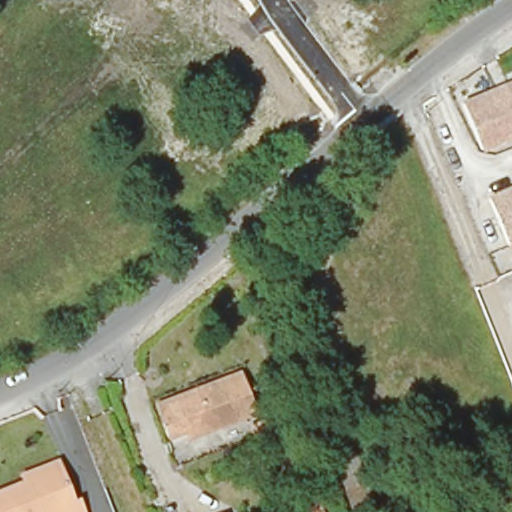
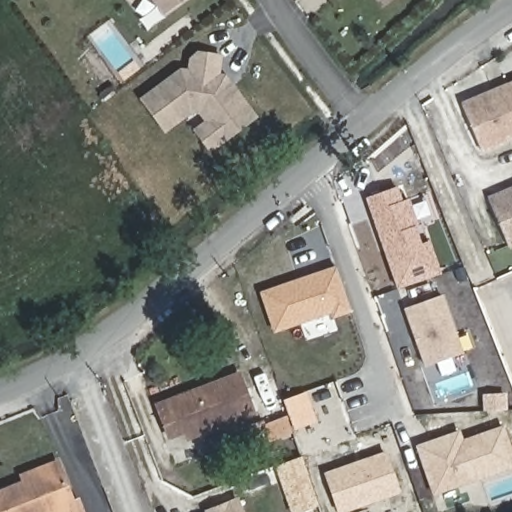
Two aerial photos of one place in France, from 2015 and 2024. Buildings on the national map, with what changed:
new [(159,14),(149,0),(178,0),(159,14)]
new [(205,113),(195,111),(167,131),(144,97),(183,70),(187,74),(192,71),(196,56),(203,51),(227,57),(221,81),(240,89),(260,119),(227,143),(213,152),(197,131),(211,121),(205,113)]
unchanged [(512,141),(480,150),(462,104),(512,88),(512,141)]
new [(366,198),(398,186),(401,197),(406,195),(423,244),(430,241),(441,273),(397,287),(366,198)]
unchanged [(512,245),(506,247),(490,202),(512,195),(512,245)]
new [(274,330),(261,292),(337,267),(350,306),(279,330),(274,330)]
new [(404,309),(442,295),(463,353),(425,367),(404,309)]
unchanged [(244,372),(259,413),(223,425),(220,417),(179,431),(166,405),(244,372)]
new [(416,446),(458,431),(461,439),(504,424),(512,446),(512,468),(433,495),(416,446)]
demolished [(345,512),(324,462),(351,448),(368,497),(348,512),(345,512)]
new [(338,512),(324,472),(386,450),(401,493),(348,512),(338,512)]
new [(302,512),(292,512),(276,465),(302,456),(319,505),(302,512)]
unchanged [(70,457),(74,467),(91,510),(88,512),(66,512),(63,505),(47,512),(16,512),(8,492),(38,480),(35,471),(70,457)]
unchanged [(8,492),(16,512),(0,512),(0,496),(8,492)]

